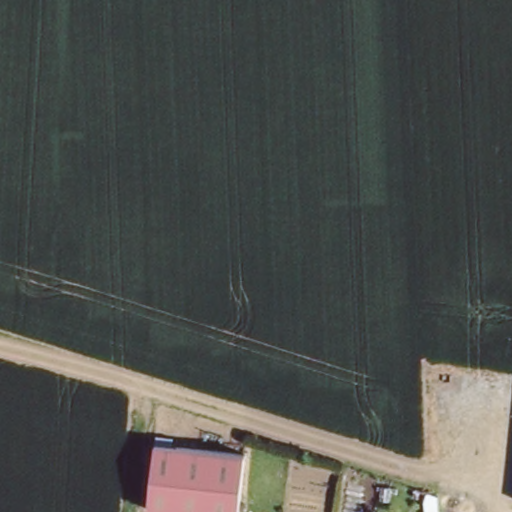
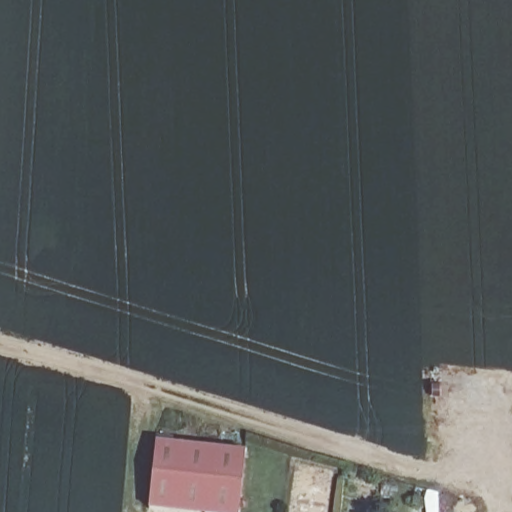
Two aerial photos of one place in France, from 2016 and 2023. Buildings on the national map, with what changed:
unchanged [(198,512),(148,503),(157,440),(246,454),(237,512),(198,512)]
unchanged [(438,493),(440,493),(440,512),(429,512),(427,490),(428,491),(438,493)]

